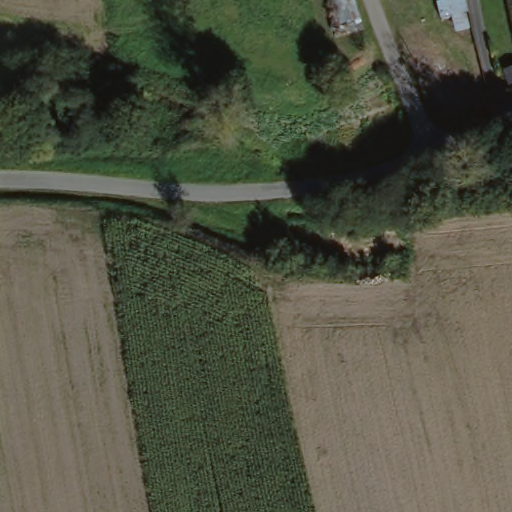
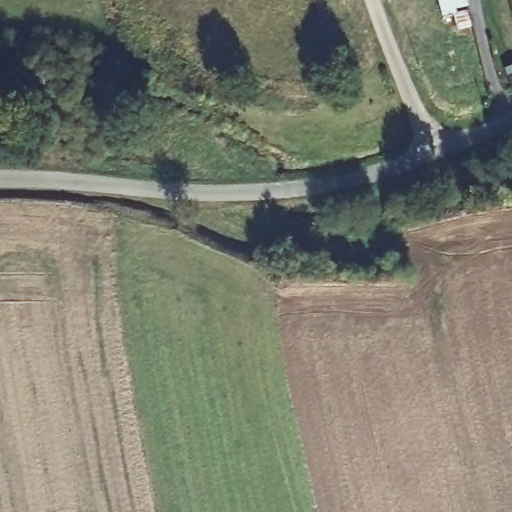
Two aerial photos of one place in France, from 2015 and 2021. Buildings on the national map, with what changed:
unchanged [(344,23),(338,0),(359,0),(364,18),(344,23)]
unchanged [(472,30),(451,35),(445,6),(458,3),(458,0),(467,0),(468,11),(472,30)]

